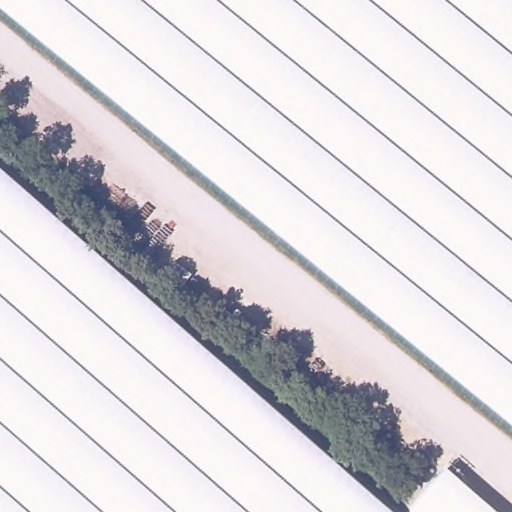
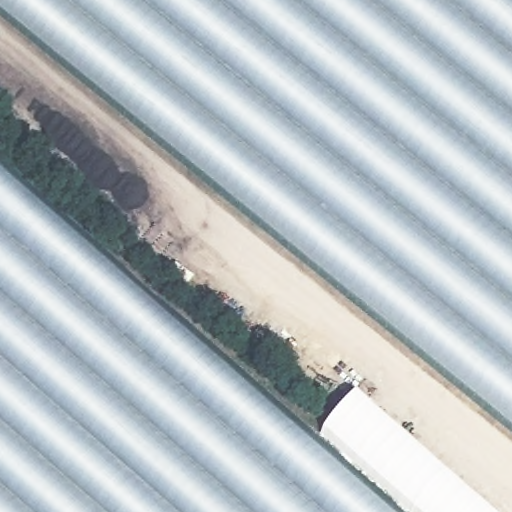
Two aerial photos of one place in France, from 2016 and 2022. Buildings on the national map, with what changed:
unchanged [(512,425),(0,8),(0,0),(512,0),(512,425)]
unchanged [(395,512),(0,512),(0,167),(395,512)]
new [(498,512),(423,512),(324,427),(359,388),(498,512)]

